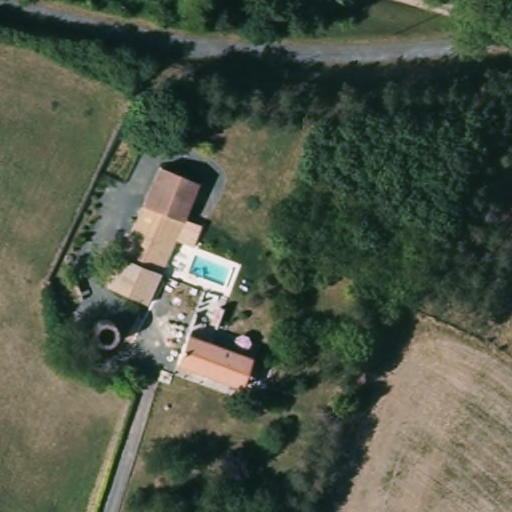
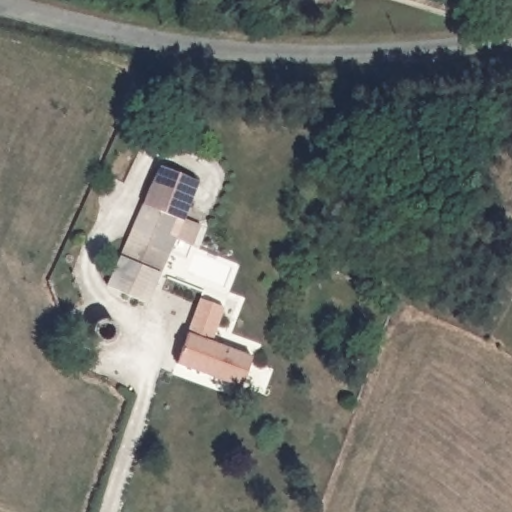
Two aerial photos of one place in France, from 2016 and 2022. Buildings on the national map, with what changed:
unchanged [(159,165),(200,183),(184,222),(160,275),(146,305),(106,287),(120,258),(143,204),(159,165)]
unchanged [(250,362),(241,392),(177,367),(189,338),(250,362)]

